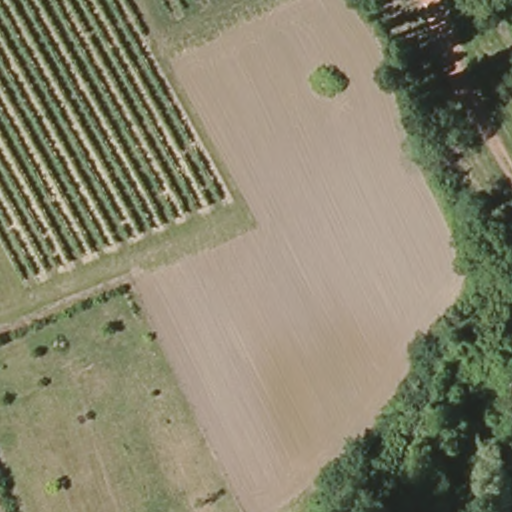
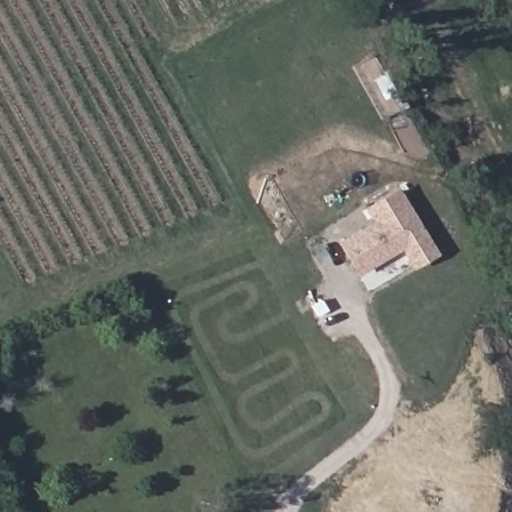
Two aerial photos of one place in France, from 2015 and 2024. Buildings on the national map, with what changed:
new [(411,270),(400,250),(356,277),(336,242),(371,222),(362,208),(396,187),(437,255),(411,270)]

